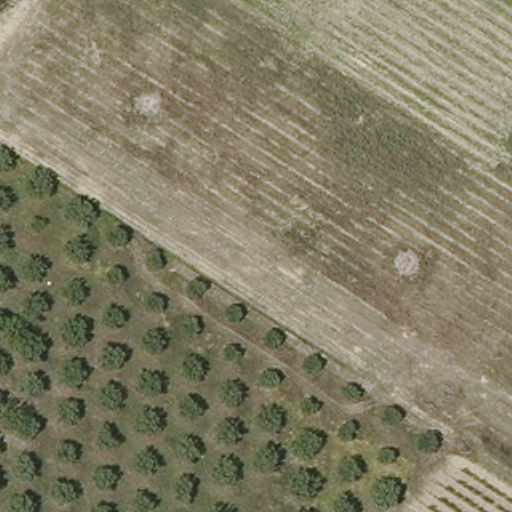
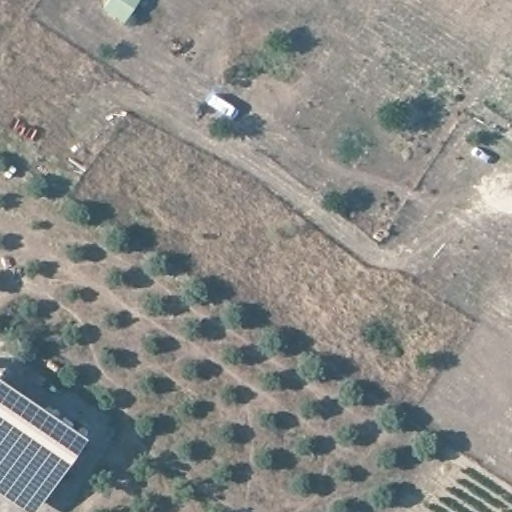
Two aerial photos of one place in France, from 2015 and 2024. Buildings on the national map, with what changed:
new [(138,0),(128,17),(107,5),(109,0),(138,0)]
new [(33,512),(27,512),(0,495),(0,374),(87,432),(33,512)]

